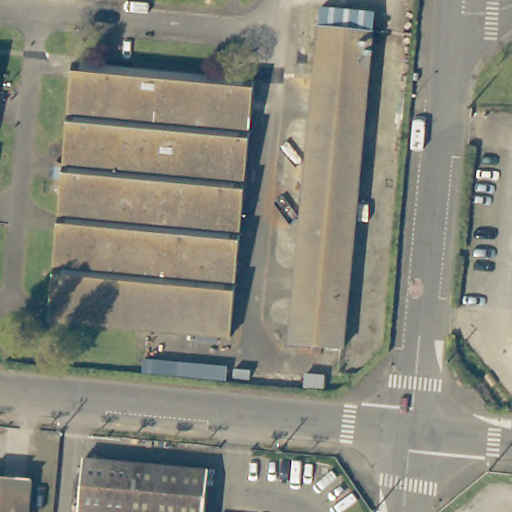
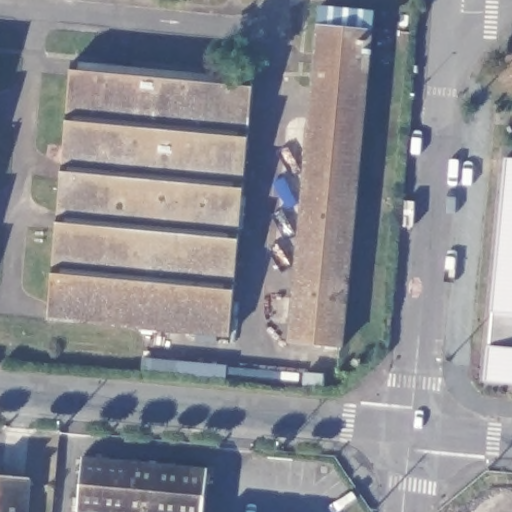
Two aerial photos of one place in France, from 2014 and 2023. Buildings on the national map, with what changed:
unchanged [(310,83),(316,25),(318,5),(371,11),(363,89),(337,345),(284,340),(310,83)]
unchanged [(225,335),(43,317),(68,61),(250,78),(225,335)]
new [(485,382),(506,160),(512,160),(512,384),(485,382)]
unchanged [(82,458),(204,469),(201,512),(84,512),(77,511),(82,458)]
unchanged [(26,512),(0,512),(0,474),(28,476),(26,512)]

